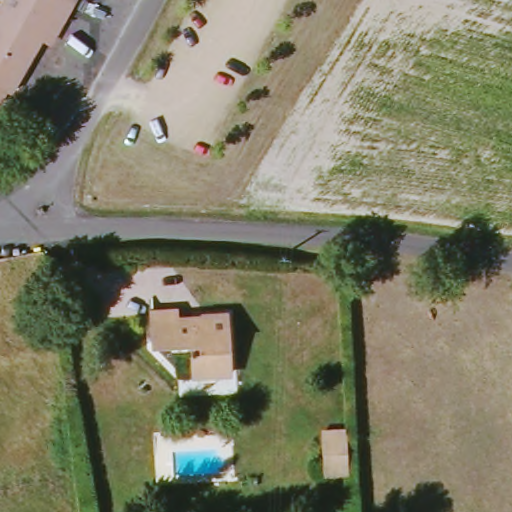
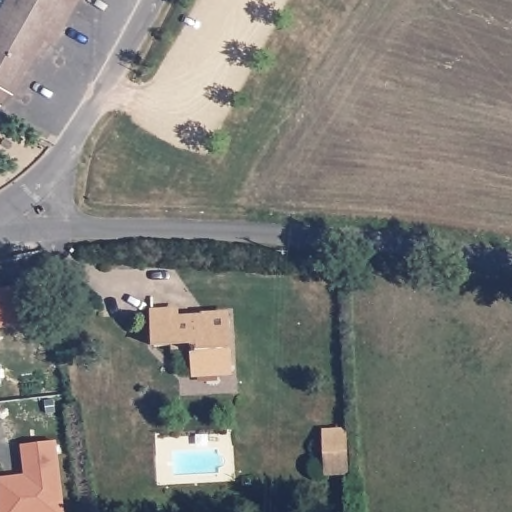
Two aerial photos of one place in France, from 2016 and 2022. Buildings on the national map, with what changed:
unchanged [(57,43),(48,38),(16,93),(12,91),(4,105),(0,102),(0,19),(11,0),(81,0),(68,23),(57,43)]
new [(0,327),(0,289),(13,287),(19,325),(0,327)]
unchanged [(152,312),(177,311),(178,320),(204,318),(204,316),(228,315),(231,372),(194,376),(193,352),(178,352),(178,346),(155,347),(152,312)]
unchanged [(324,432),(346,431),(348,472),(326,474),(324,432)]
new [(25,475),(21,446),(57,441),(65,512),(0,512),(0,479),(25,475)]

